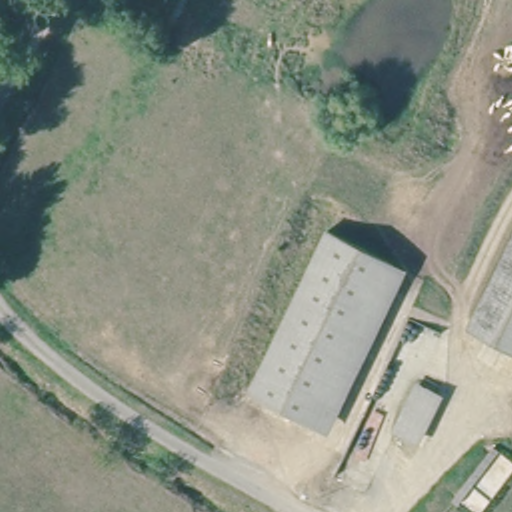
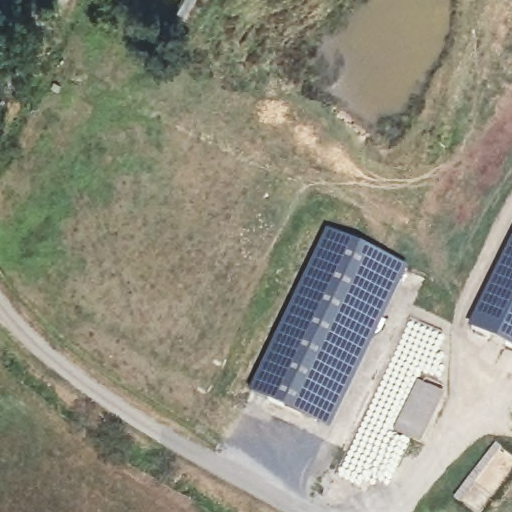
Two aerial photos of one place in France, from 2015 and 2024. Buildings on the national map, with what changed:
unchanged [(321,423),(250,389),(326,229),(396,264),(321,423)]
unchanged [(407,268),(330,428),(321,423),(396,264),(407,268)]
unchanged [(485,333),(512,275),(512,346),(485,333)]
unchanged [(443,389),(420,437),(402,427),(423,381),(443,389)]

